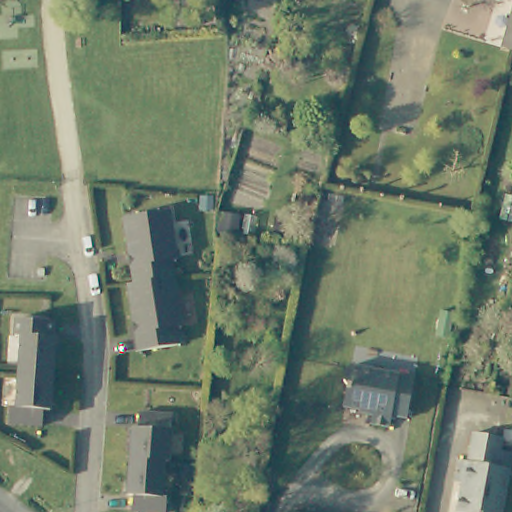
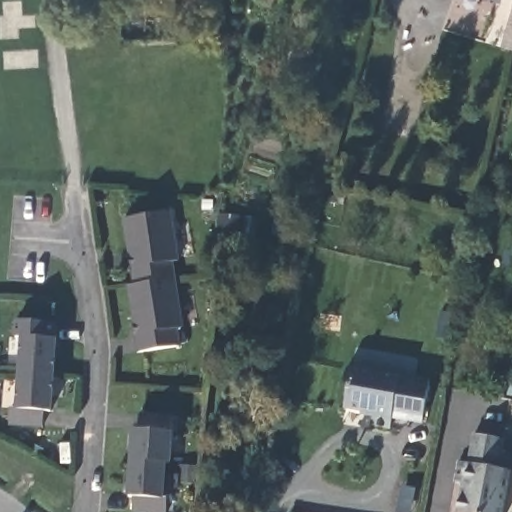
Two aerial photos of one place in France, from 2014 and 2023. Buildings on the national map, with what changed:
unchanged [(498,46),(511,0),(512,0),(512,51),(498,46)]
unchanged [(237,219),(234,244),(234,245),(209,243),(212,217),(237,219)]
unchanged [(176,267),(168,268),(181,334),(174,336),(178,356),(140,363),(126,293),(131,292),(119,227),(166,219),(176,267)]
unchanged [(53,342),(59,343),(55,415),(48,414),(47,430),(14,428),(13,412),(22,412),(26,342),(18,341),(19,323),(54,327),(53,342)]
unchanged [(407,422),(391,420),(390,430),(369,427),(370,417),(341,413),(344,388),(341,385),(344,368),(412,377),(407,422)]
unchanged [(168,463),(163,463),(160,497),(165,498),(163,512),(143,512),(130,511),(130,496),(126,495),(131,427),(136,427),(138,411),(172,415),(168,463)]
unchanged [(457,495),(463,488),(463,482),(454,480),(458,460),(469,462),(473,433),(503,438),(501,450),(512,452),(509,469),(502,512),(454,512),(457,495)]

